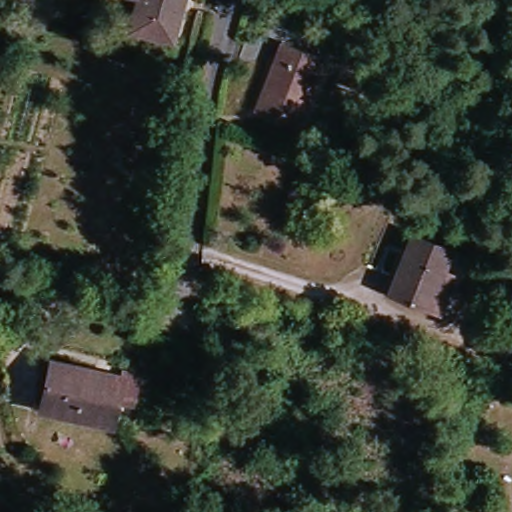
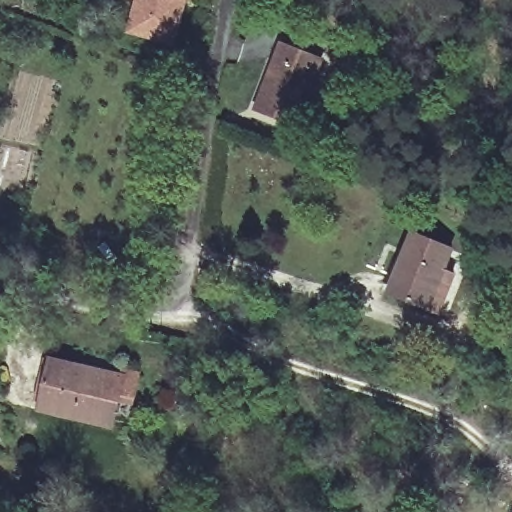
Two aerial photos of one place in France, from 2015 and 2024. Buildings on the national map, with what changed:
unchanged [(146,0),(193,0),(187,37),(141,26),(146,0)]
unchanged [(281,44),(321,60),(292,128),(254,112),(281,44)]
unchanged [(425,235),(467,252),(447,310),(403,293),(425,235)]
unchanged [(60,358),(137,382),(124,426),(49,403),(60,358)]

